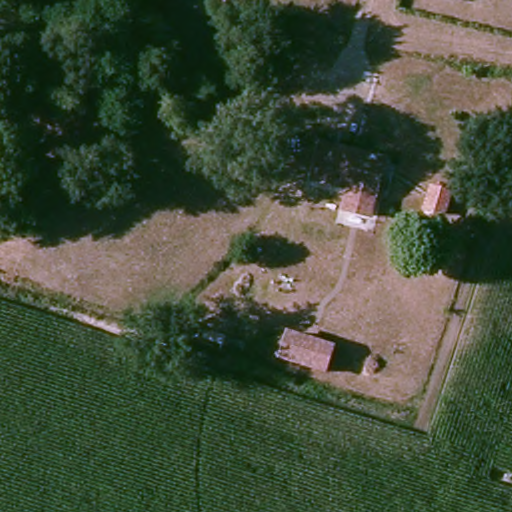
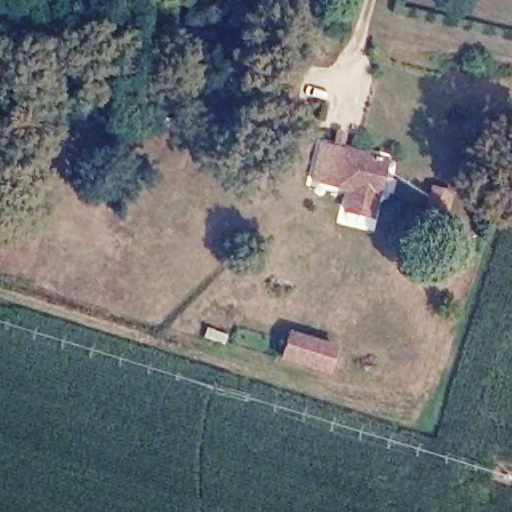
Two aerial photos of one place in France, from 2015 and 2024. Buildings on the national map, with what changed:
unchanged [(378,196),(312,180),(326,119),(353,125),(348,147),(388,156),(378,196)]
unchanged [(337,345),(327,377),(277,362),(287,330),(337,345)]

